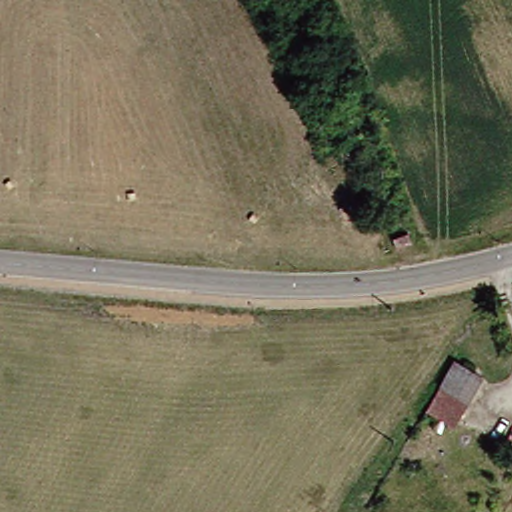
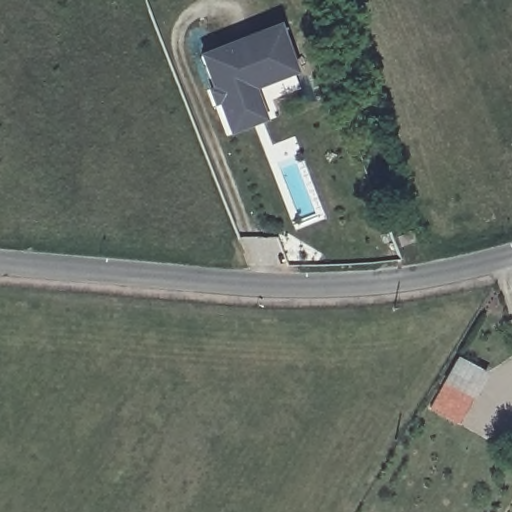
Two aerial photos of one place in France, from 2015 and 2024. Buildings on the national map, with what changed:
new [(217,105),(212,107),(206,90),(210,87),(196,55),(275,25),(295,73),(254,91),(265,121),(229,136),(217,105)]
unchanged [(476,373),(447,422),(421,407),(451,357),(476,373)]

